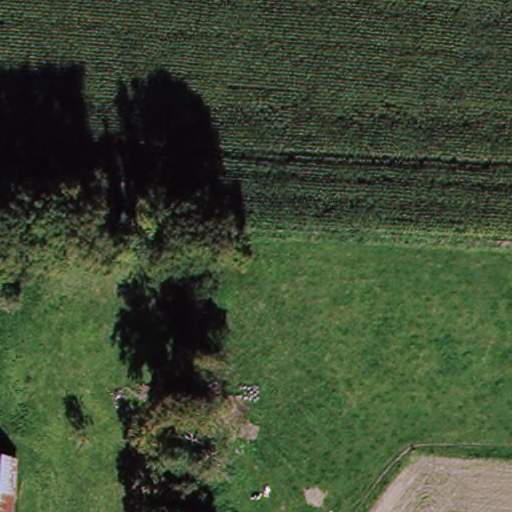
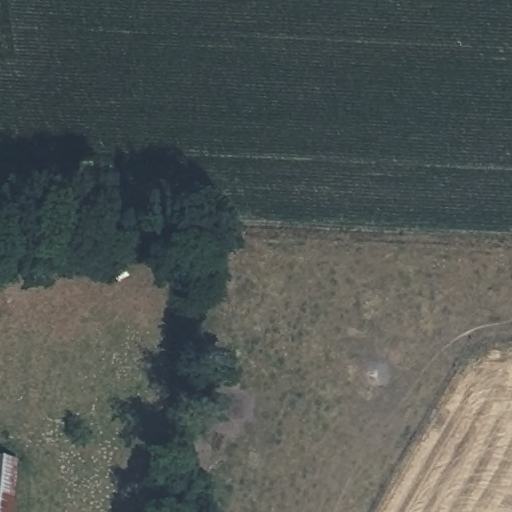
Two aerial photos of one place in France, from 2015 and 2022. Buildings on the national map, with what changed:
unchanged [(20,461),(14,512),(0,512),(0,458),(20,461)]

